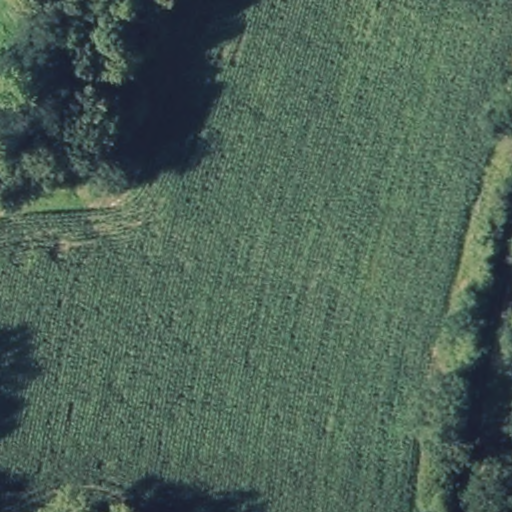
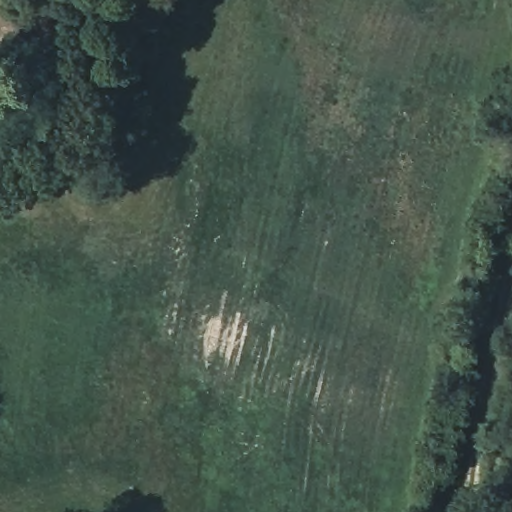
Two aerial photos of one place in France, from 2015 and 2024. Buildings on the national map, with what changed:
unchanged [(76,82),(43,35),(71,15),(100,63),(76,82)]

